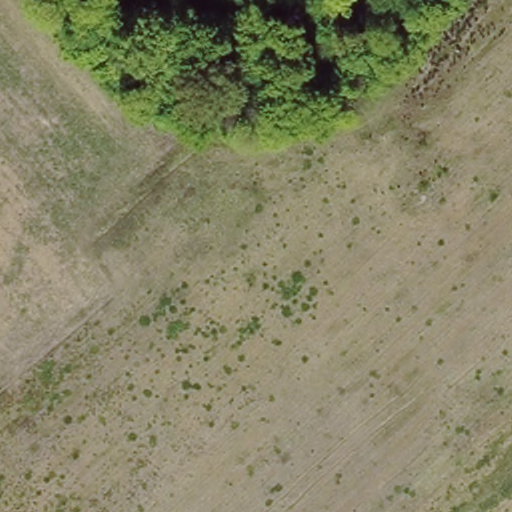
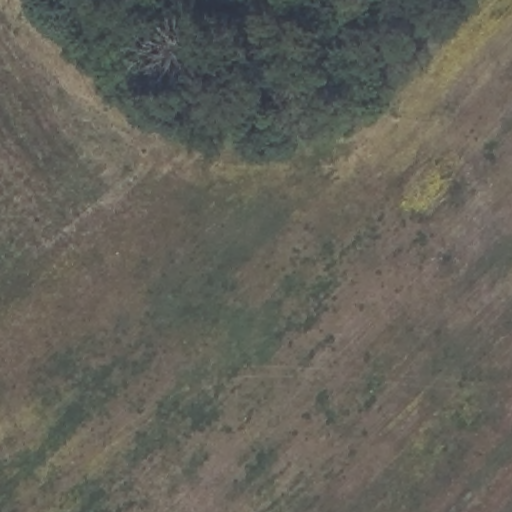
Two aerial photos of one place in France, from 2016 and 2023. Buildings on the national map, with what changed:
[]

